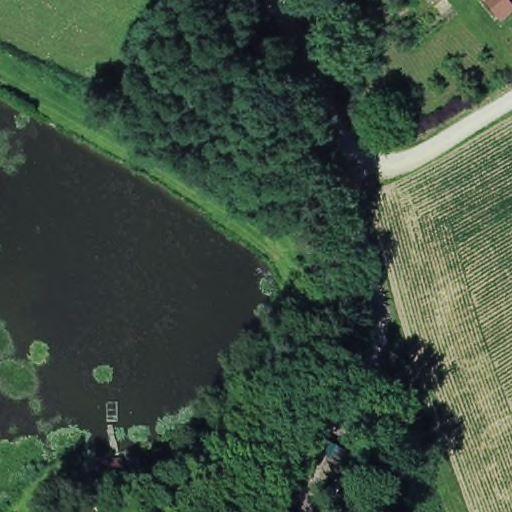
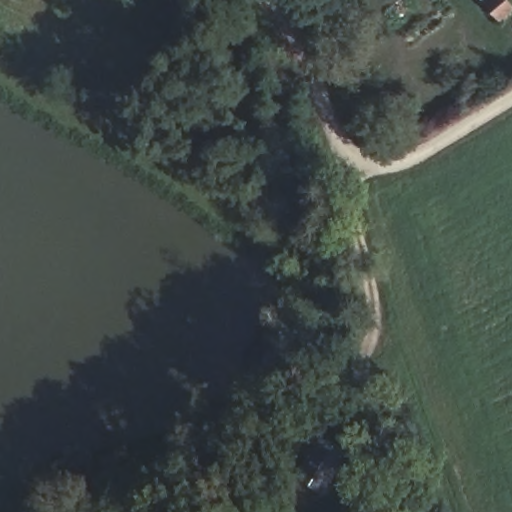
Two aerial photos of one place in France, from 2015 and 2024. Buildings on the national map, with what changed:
unchanged [(512,12),(500,20),(482,0),(511,0),(512,1),(512,12)]
unchanged [(359,444),(384,469),(353,499),(329,474),(359,444)]

